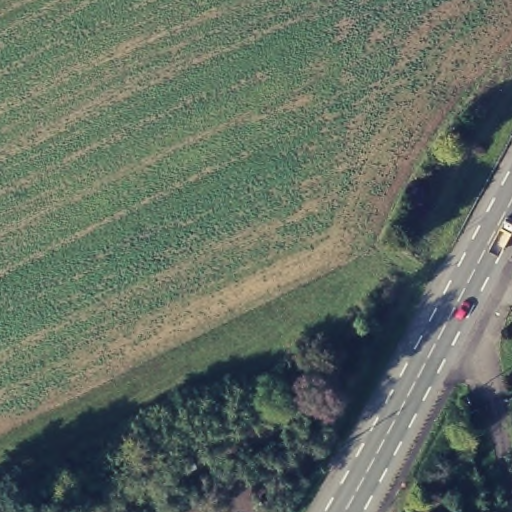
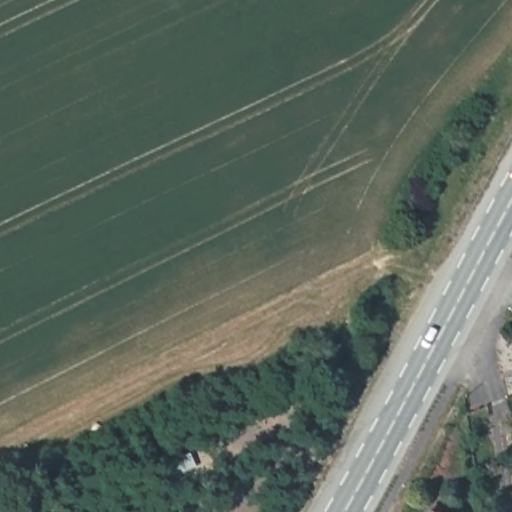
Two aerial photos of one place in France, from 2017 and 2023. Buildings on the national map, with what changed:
unchanged [(430,512),(421,512),(422,509),(430,512)]

